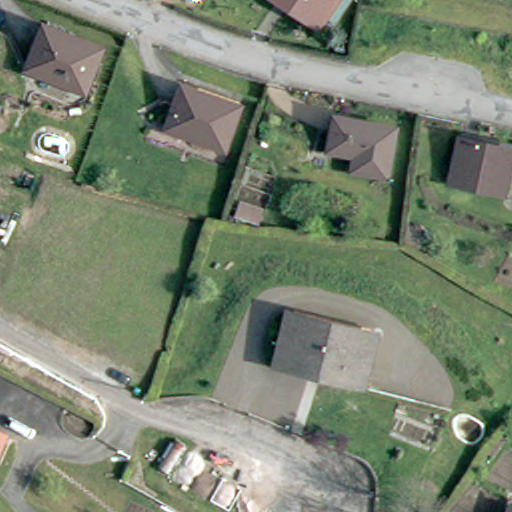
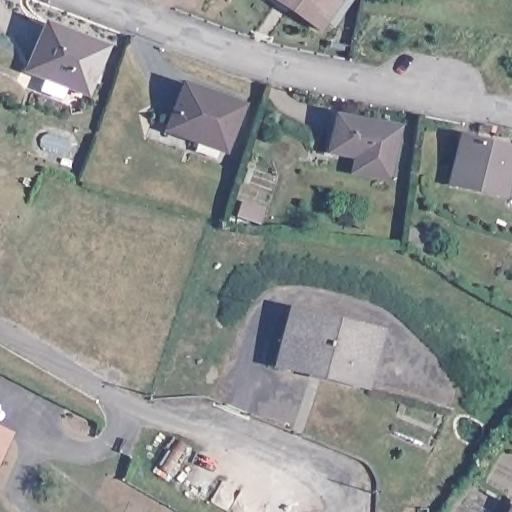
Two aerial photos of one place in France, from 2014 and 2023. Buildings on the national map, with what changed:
unchanged [(283,0),(334,0),(317,24),(283,0)]
unchanged [(65,81),(27,67),(43,26),(98,48),(85,80),(67,74),(65,81)]
unchanged [(238,106),(223,149),(167,129),(182,86),(238,106)]
unchanged [(337,119),(396,131),(389,165),(330,154),(337,119)]
unchanged [(462,136),(512,145),(512,169),(508,190),(453,180),(462,136)]
unchanged [(265,199),(256,222),(243,217),(252,194),(265,199)]
unchanged [(415,224),(432,234),(425,249),(412,242),(415,224)]
unchanged [(362,382),(276,360),(279,349),(288,309),(375,329),(364,372),(362,382)]
unchanged [(2,432),(0,436),(0,431),(2,432)]
unchanged [(509,499),(512,501),(512,512),(502,512),(509,499)]

